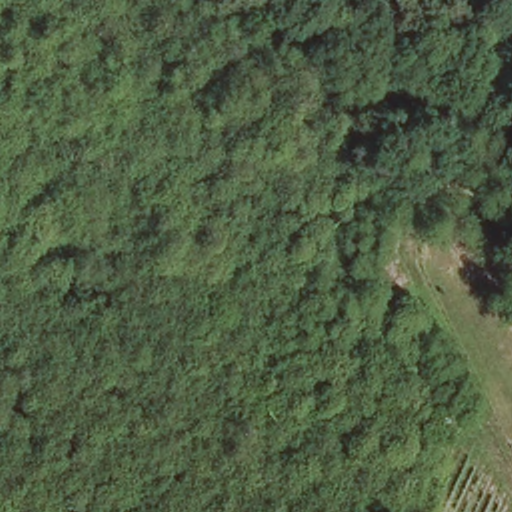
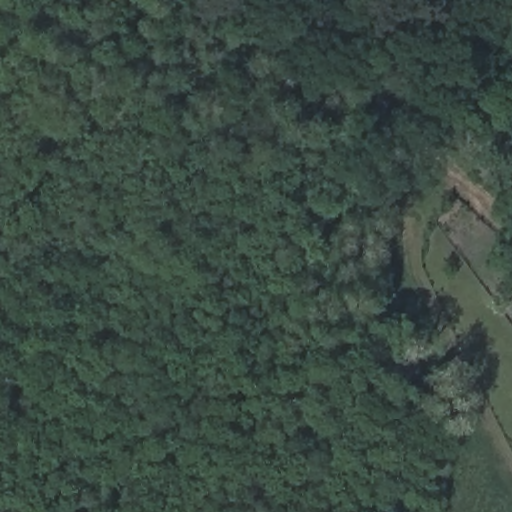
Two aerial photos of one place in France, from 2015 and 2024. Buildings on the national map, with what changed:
[]

